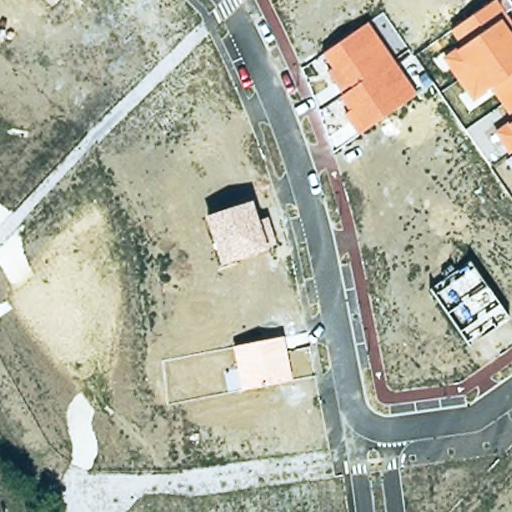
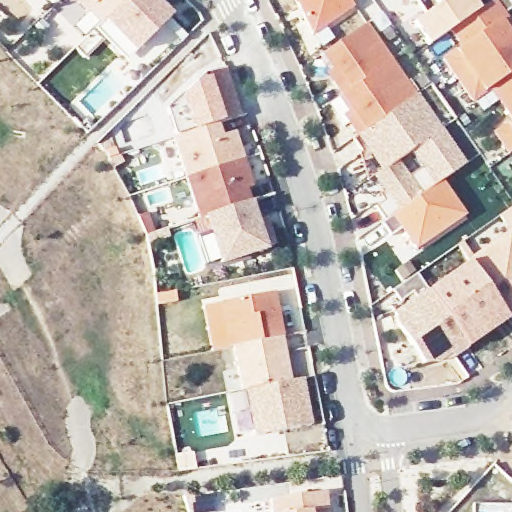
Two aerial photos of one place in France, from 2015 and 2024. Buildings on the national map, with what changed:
new [(61,0),(62,0),(61,1),(61,0)]
new [(89,13),(87,15),(72,0),(123,0),(99,24),(89,13)]
new [(102,21),(123,0),(156,0),(170,16),(135,53),(102,21)]
new [(294,0),(347,0),(352,8),(312,36),(294,0)]
new [(448,30),(450,31),(427,47),(410,24),(433,8),(428,0),(476,0),(482,8),(448,30)]
unchanged [(448,30),(494,0),(510,0),(512,3),(512,13),(510,15),(512,18),(512,152),(507,155),(493,133),(510,120),(490,89),(472,101),(442,58),(460,45),(448,30)]
unchanged [(418,95),(356,136),(342,115),(348,110),(338,96),(342,93),(325,70),(330,65),(322,54),(370,24),(418,95)]
new [(410,152),(397,161),(382,171),(356,136),(417,96),(442,130),(410,152)]
new [(172,138),(218,124),(222,136),(235,132),(243,159),(185,179),(172,138)]
new [(465,163),(420,194),(409,178),(422,169),(410,152),(442,130),(465,163)]
new [(247,190),(251,201),(207,218),(199,220),(185,179),(243,159),(252,188),(247,190)]
new [(385,221),(376,208),(384,202),(380,197),(383,193),(373,179),(382,171),(397,161),(409,178),(420,194),(385,221)]
unchanged [(251,201),(252,201),(259,220),(270,216),(279,248),(222,266),(207,218),(251,201)]
new [(467,262),(510,230),(512,232),(512,316),(507,320),(467,262)]
new [(467,262),(507,320),(469,347),(428,290),(467,262)]
new [(453,358),(450,355),(438,364),(424,365),(398,327),(395,313),(417,297),(412,292),(400,302),(392,291),(416,274),(427,289),(428,290),(469,347),(453,358)]
new [(232,346),(227,348),(220,304),(275,292),(282,335),(232,346)]
unchanged [(282,335),(284,334),(293,384),(242,393),(232,346),(282,335)]
new [(312,426),(253,437),(245,393),(293,384),(293,382),(302,379),(312,426)]
new [(212,492),(214,512),(188,512),(183,496),(190,496),(212,492)]
new [(270,501),(326,493),(328,512),(271,512),(270,501)]

